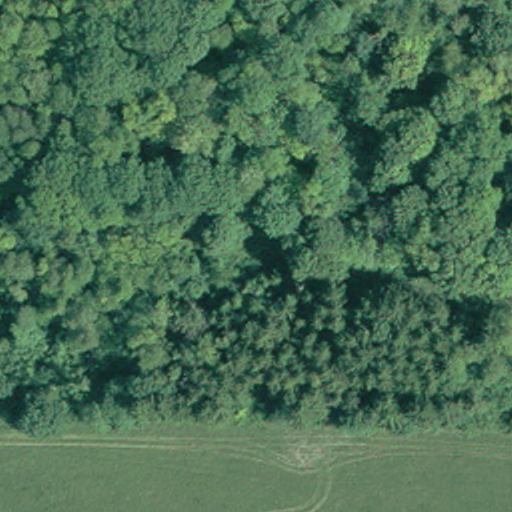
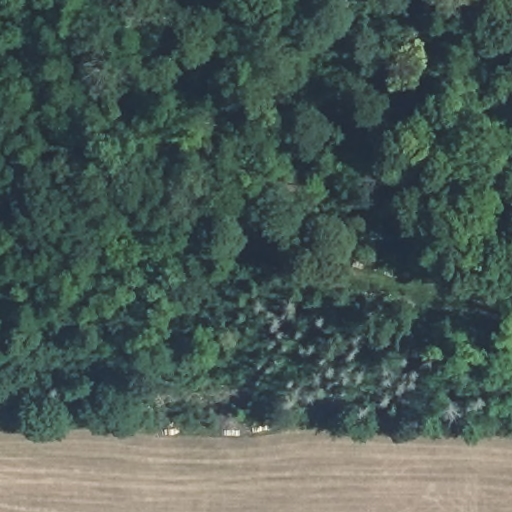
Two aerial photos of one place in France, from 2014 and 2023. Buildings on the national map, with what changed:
unchanged [(5,162),(11,143),(31,149),(25,169),(5,162)]

